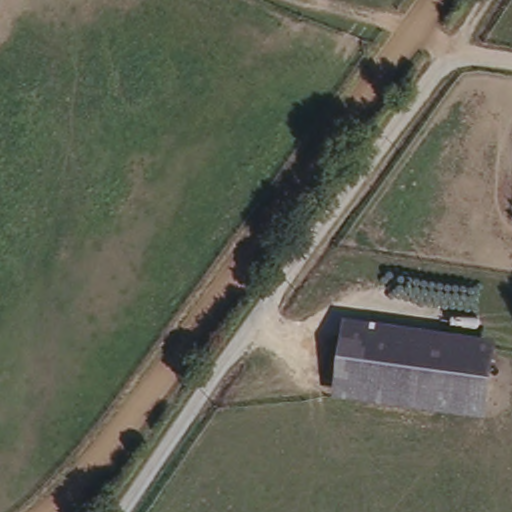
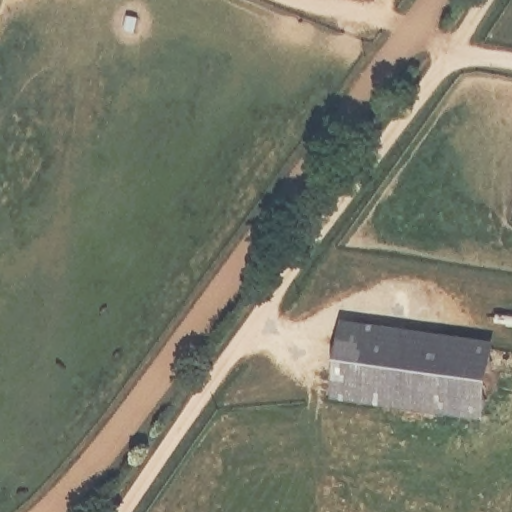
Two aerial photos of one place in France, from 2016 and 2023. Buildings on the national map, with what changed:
unchanged [(496,346),(483,420),(339,401),(351,325),(496,346)]

